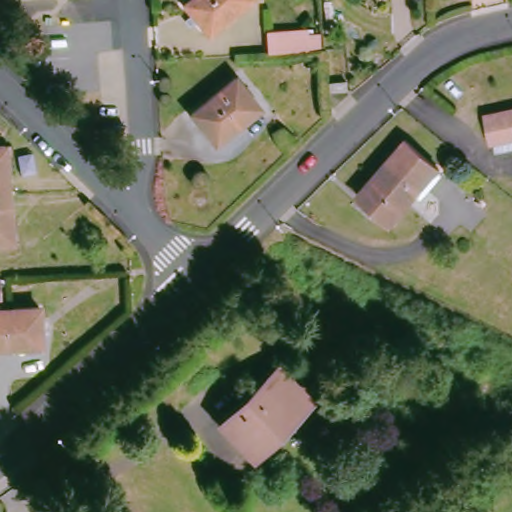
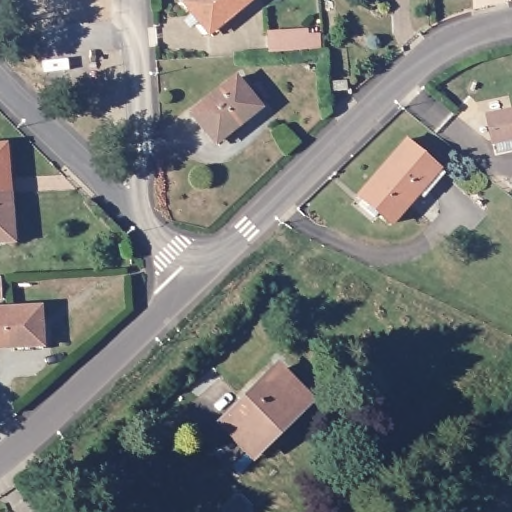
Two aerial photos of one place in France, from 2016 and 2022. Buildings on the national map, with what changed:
unchanged [(209,34),(198,22),(191,28),(185,21),(193,15),(185,5),(190,0),(250,0),(209,34)]
unchanged [(269,54),(268,34),(307,31),(307,37),(320,36),(320,51),(269,54)]
unchanged [(340,69),(330,70),(330,58),(340,57),(340,69)]
unchanged [(260,109),(215,144),(192,114),(235,79),(260,109)]
unchanged [(347,82),(347,91),(330,92),(329,84),(347,82)]
unchanged [(493,143),(488,116),(512,110),(512,154),(499,157),(497,142),(493,143)]
unchanged [(406,142),(439,169),(420,191),(387,164),(406,142)]
unchanged [(0,196),(0,146),(5,146),(9,196),(0,196)]
unchanged [(392,223),(358,196),(387,164),(420,191),(392,223)]
unchanged [(9,196),(12,242),(0,243),(0,196),(9,196)]
unchanged [(6,278),(8,301),(0,301),(0,278),(6,278)]
unchanged [(45,309),(46,347),(0,349),(0,312),(45,309)]
unchanged [(285,371),(313,398),(260,449),(234,421),(285,371)]

